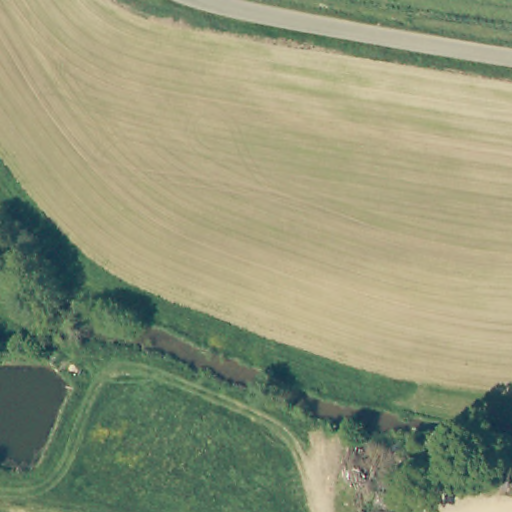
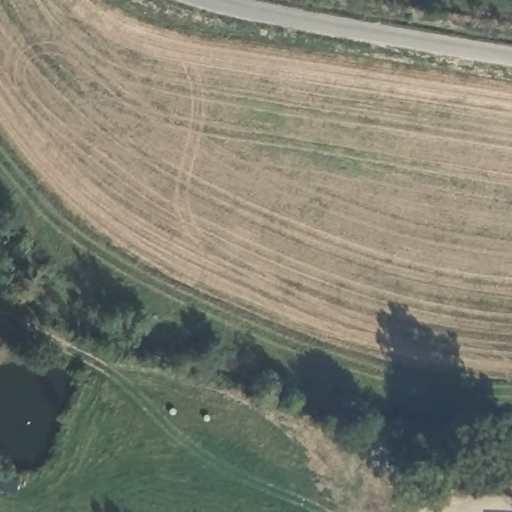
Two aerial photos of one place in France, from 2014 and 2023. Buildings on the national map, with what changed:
unchanged [(511,466),(509,482),(416,467),(420,450),(511,466)]

